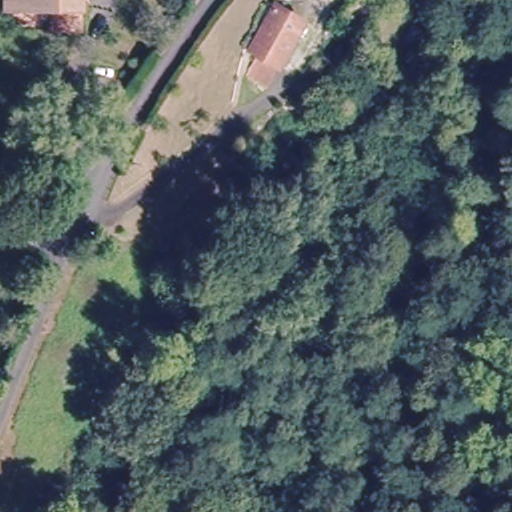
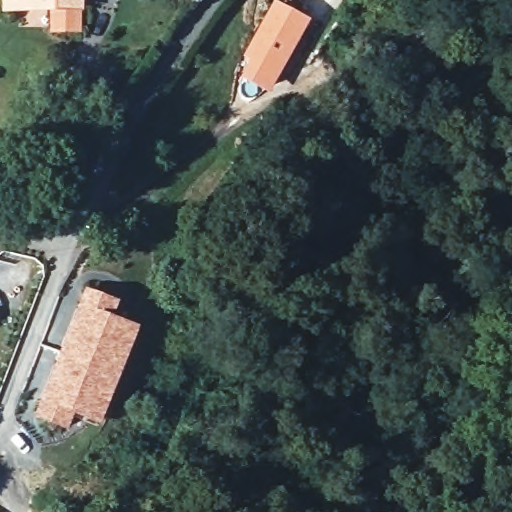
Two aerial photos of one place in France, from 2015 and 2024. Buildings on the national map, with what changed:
unchanged [(52,28),(52,4),(7,4),(7,0),(79,0),(79,28),(52,28)]
unchanged [(246,71),(258,49),(251,44),(276,1),(307,19),(282,62),(280,61),(267,84),(246,71)]
unchanged [(400,48),(414,25),(431,36),(422,51),(414,64),(397,53),(400,48)]
new [(103,427),(75,414),(69,431),(36,419),(87,289),(121,303),(115,317),(142,329),(103,427)]

